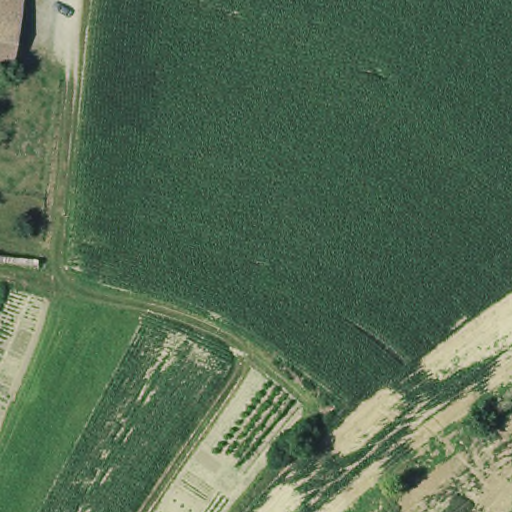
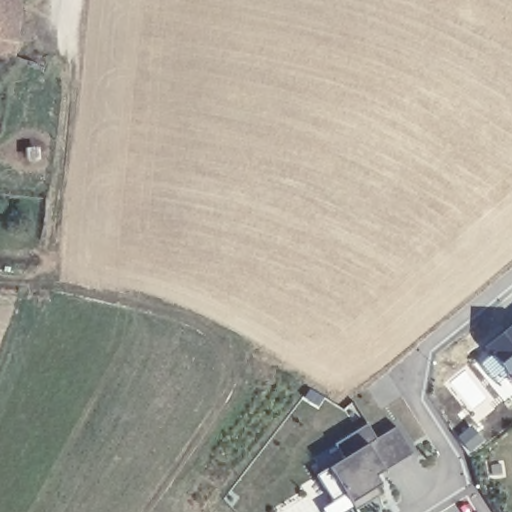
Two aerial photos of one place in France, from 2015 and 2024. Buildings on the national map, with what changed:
unchanged [(0,0),(27,0),(23,41),(15,40),(11,68),(0,68),(0,0)]
new [(485,348),(512,325),(512,381),(485,348)]
new [(375,490),(379,497),(355,512),(354,512),(343,495),(331,503),(315,478),(342,461),(333,446),(365,426),(375,440),(395,428),(411,455),(375,478),(380,487),(375,490)]

